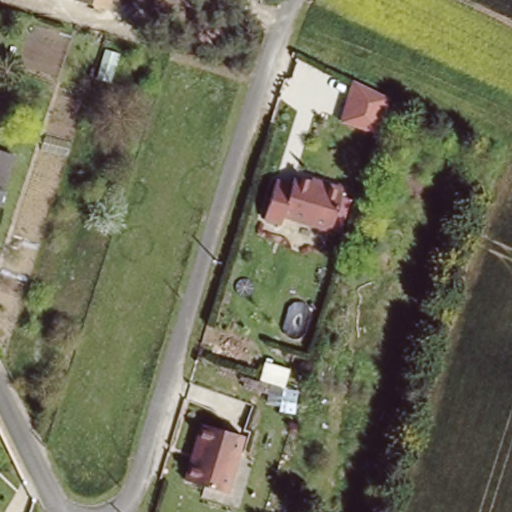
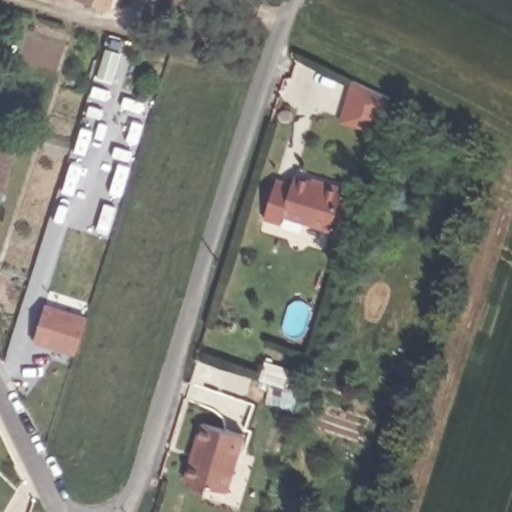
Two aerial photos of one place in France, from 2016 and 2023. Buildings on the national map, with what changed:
unchanged [(72,1),(72,0),(113,0),(109,14),(72,1)]
unchanged [(351,81),(394,100),(378,136),(338,122),(351,81)]
unchanged [(2,209),(0,208),(0,155),(18,160),(2,209)]
unchanged [(333,232),(285,217),(282,226),(263,220),(277,179),(294,184),(296,177),(324,186),(326,181),(348,188),(333,232)]
new [(45,305),(85,317),(73,355),(32,342),(45,305)]
unchanged [(273,355),(297,365),(290,381),(266,371),(273,355)]
unchanged [(223,499),(182,483),(206,428),(247,445),(223,499)]

